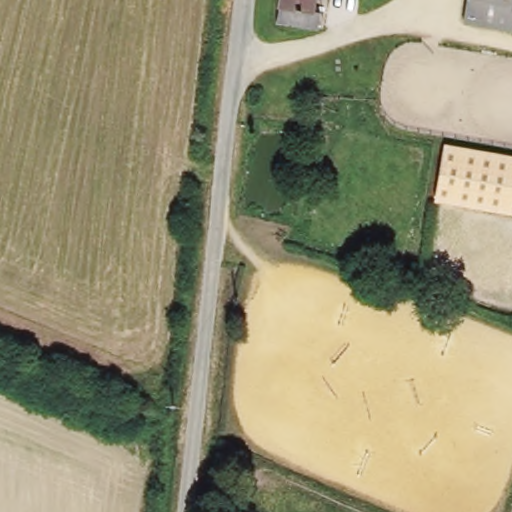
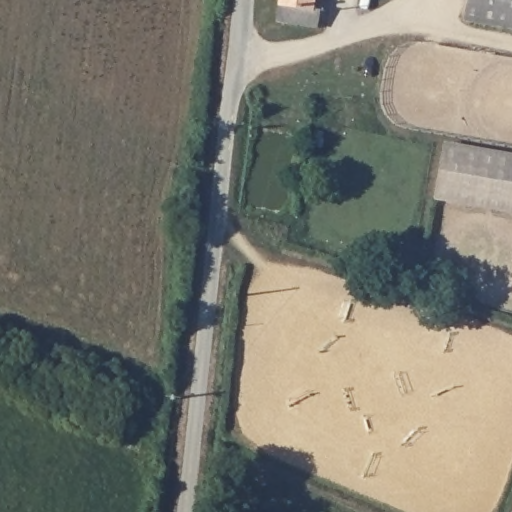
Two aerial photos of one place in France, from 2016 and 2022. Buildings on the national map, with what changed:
unchanged [(318,10),(316,29),(274,21),(278,0),(313,0),(312,9),(318,10)]
unchanged [(464,0),(512,0),(512,23),(462,14),(464,0)]
unchanged [(512,156),(512,213),(435,200),(445,144),(512,156)]

